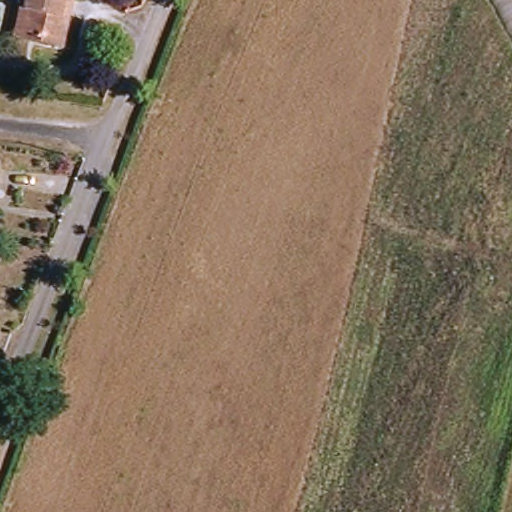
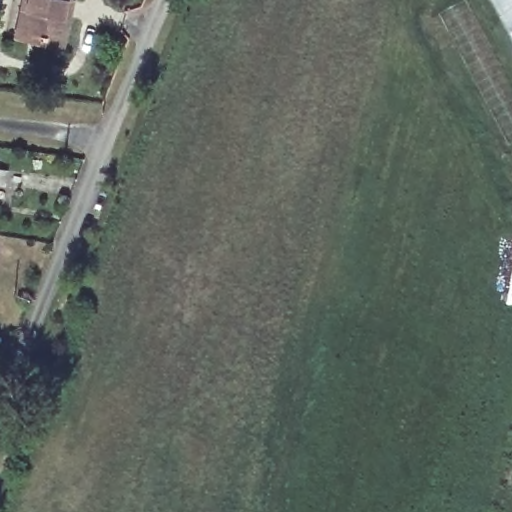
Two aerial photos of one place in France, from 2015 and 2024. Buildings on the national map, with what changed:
new [(439,13),(464,0),(470,0),(512,82),(512,144),(511,144),(439,13)]
unchanged [(512,0),(512,35),(494,0),(512,0)]

